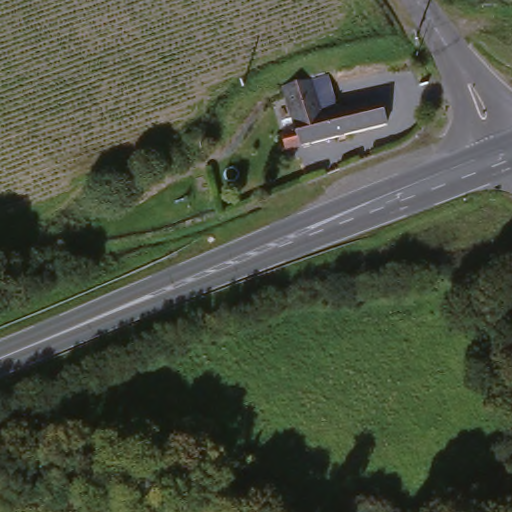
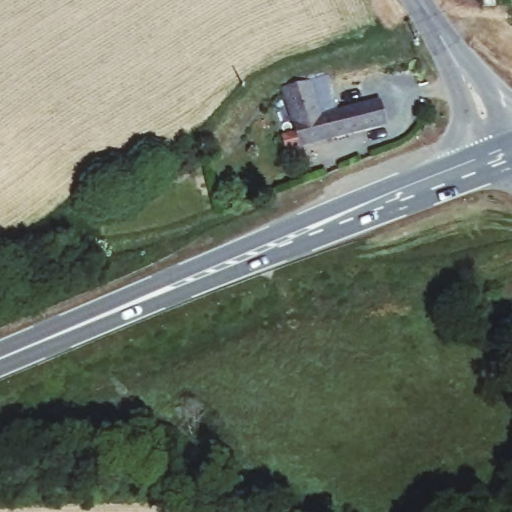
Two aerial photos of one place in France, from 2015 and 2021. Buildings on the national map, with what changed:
unchanged [(381,132),(282,153),(278,136),(291,133),(284,101),(327,90),(332,110),(374,101),(381,132)]
unchanged [(254,146),(235,170),(226,157),(242,137),(254,146)]
unchanged [(311,182),(269,197),(261,173),(275,167),(278,174),(304,164),(311,182)]

